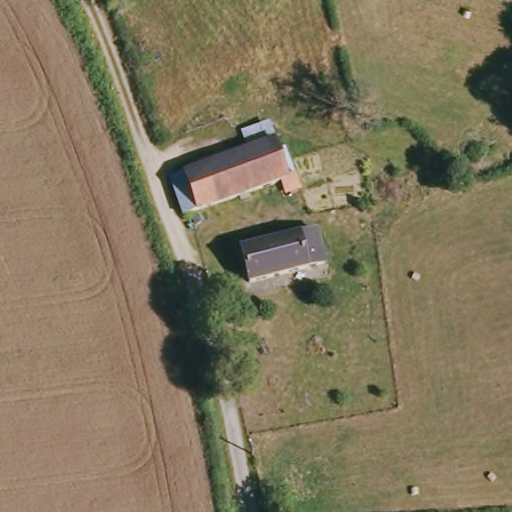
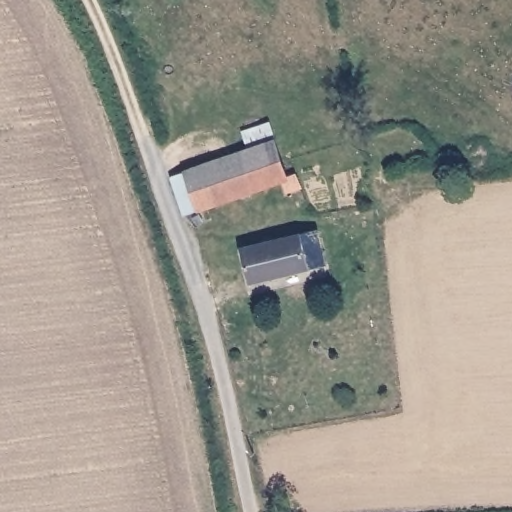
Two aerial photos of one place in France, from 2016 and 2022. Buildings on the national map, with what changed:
unchanged [(288,167),(299,164),(305,177),(285,188),(280,177),(196,216),(181,179),(192,175),(277,138),(288,167)]
unchanged [(324,261),(262,286),(251,250),(312,227),(324,261)]

